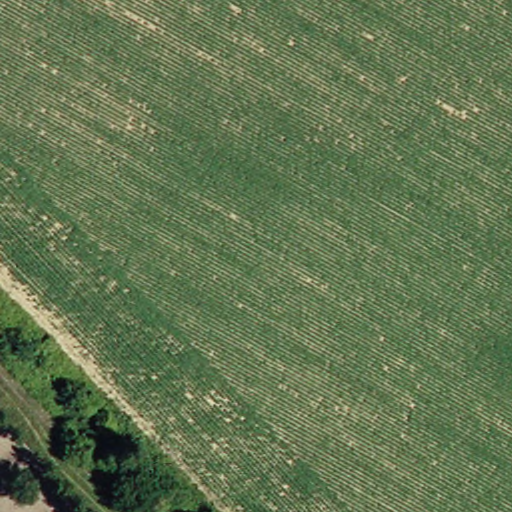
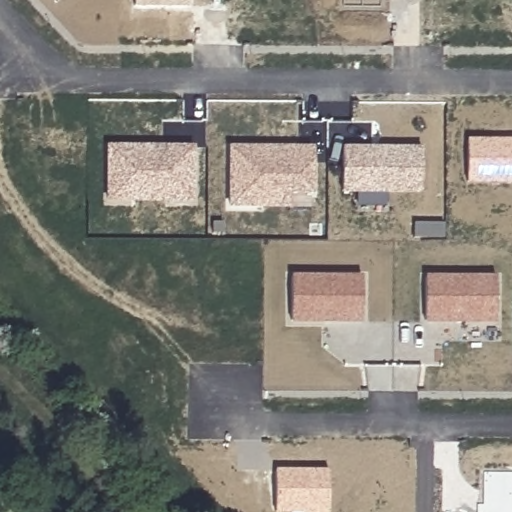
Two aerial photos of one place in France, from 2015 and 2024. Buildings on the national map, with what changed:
new [(134,7),(134,0),(188,0),(189,7),(134,7)]
new [(343,5),(343,0),(379,0),(379,5),(343,5)]
new [(465,182),(466,139),(512,140),(512,184),(465,182)]
new [(195,202),(106,202),(106,145),(195,146),(195,202)]
new [(315,194),(291,194),(290,209),(227,208),(228,145),(314,147),(315,194)]
new [(421,193),(342,194),(342,146),(422,147),(421,193)]
new [(362,324),(290,324),(290,275),(362,275),(362,324)]
new [(496,324),(425,324),(425,275),(496,276),(496,324)]
new [(328,512),(275,512),(275,469),(328,469),(328,512)]
new [(477,504),(483,504),(484,471),(512,472),(512,512),(477,512),(477,504)]

